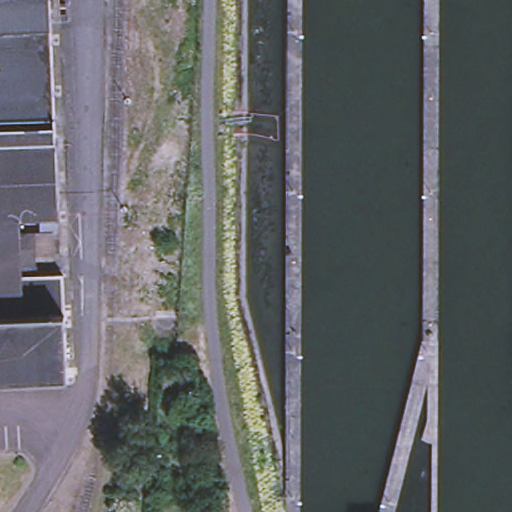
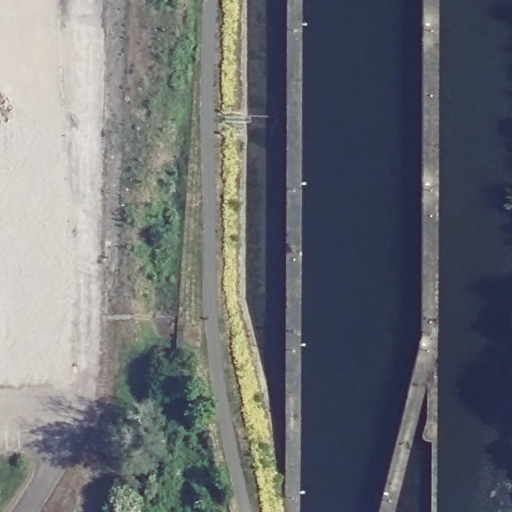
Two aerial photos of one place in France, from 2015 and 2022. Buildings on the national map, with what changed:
demolished [(47,31),(0,33),(0,0),(45,0),(47,31)]
demolished [(20,216),(20,258),(21,310),(0,315),(0,33),(47,31),(59,211),(20,216)]
new [(19,215),(25,275),(64,270),(66,309),(69,375),(0,378),(0,140),(56,137),(60,213),(19,215)]
demolished [(63,378),(0,381),(0,315),(21,310),(62,312),(63,378)]

